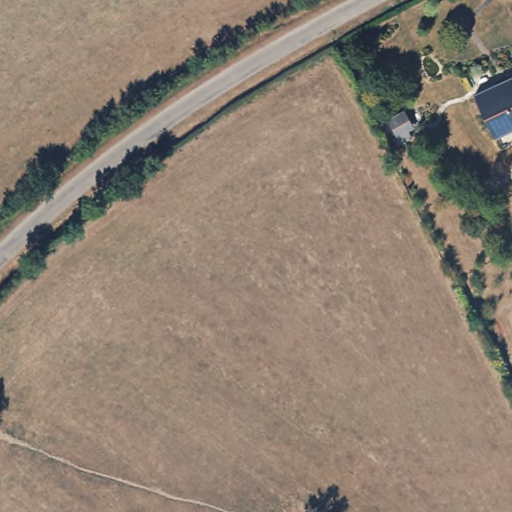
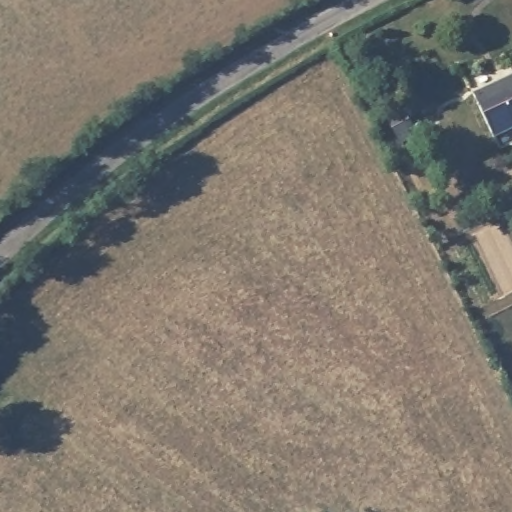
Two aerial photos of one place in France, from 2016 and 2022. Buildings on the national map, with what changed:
unchanged [(477,95),(485,91),(512,78),(512,128),(505,131),(497,136),(477,95)]

